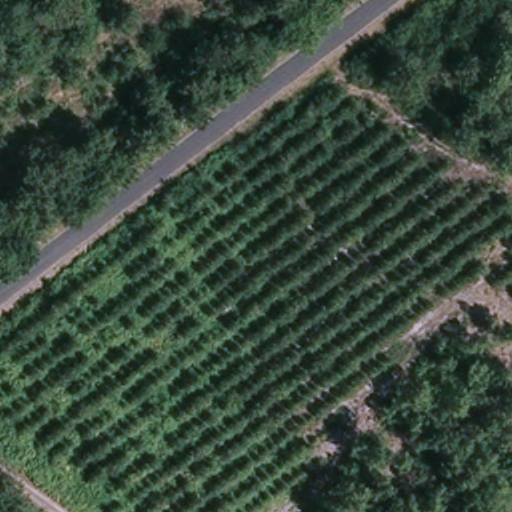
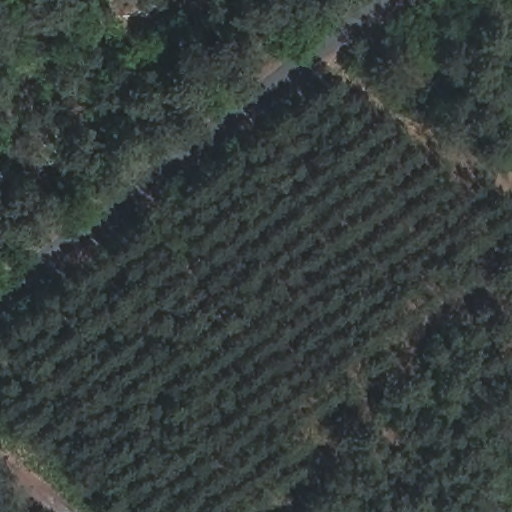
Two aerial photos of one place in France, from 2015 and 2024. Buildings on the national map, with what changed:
[]

